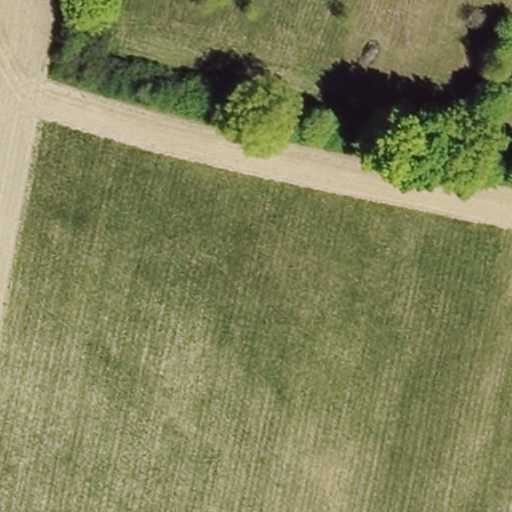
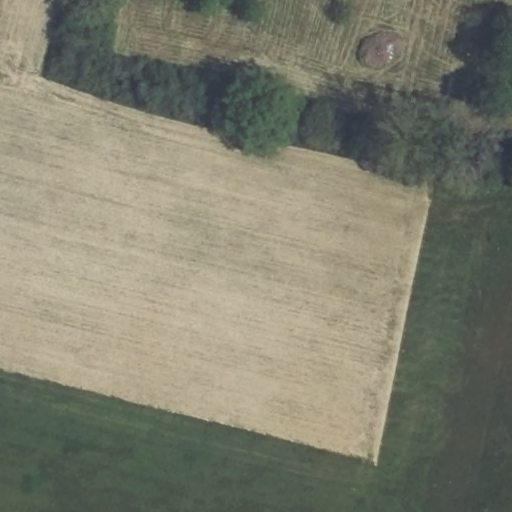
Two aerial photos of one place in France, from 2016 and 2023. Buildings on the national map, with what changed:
[]

